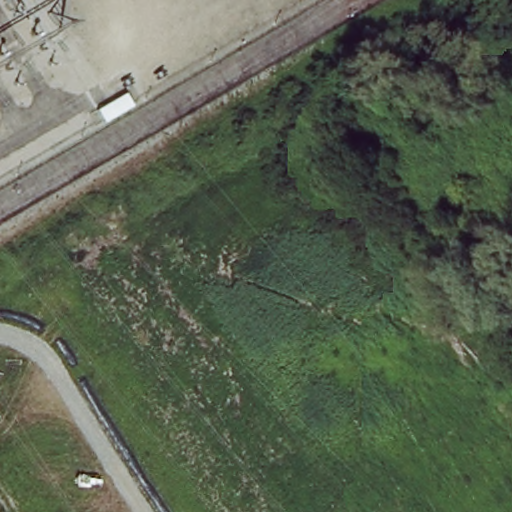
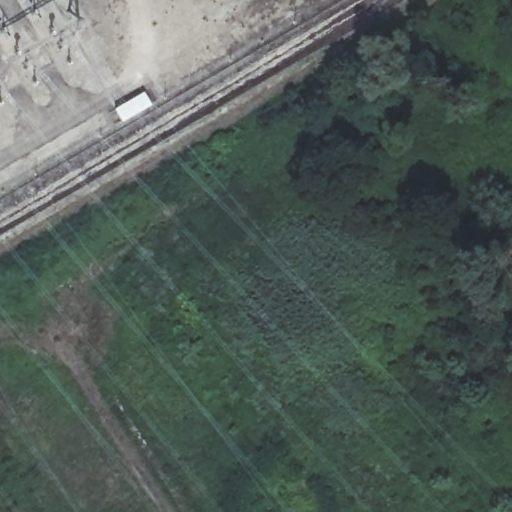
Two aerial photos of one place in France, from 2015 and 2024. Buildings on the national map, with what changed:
[]

